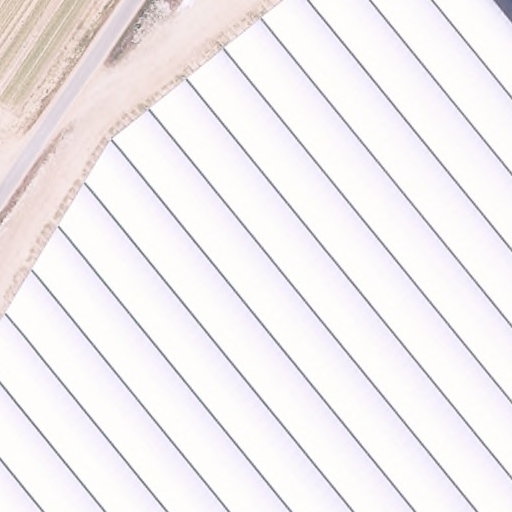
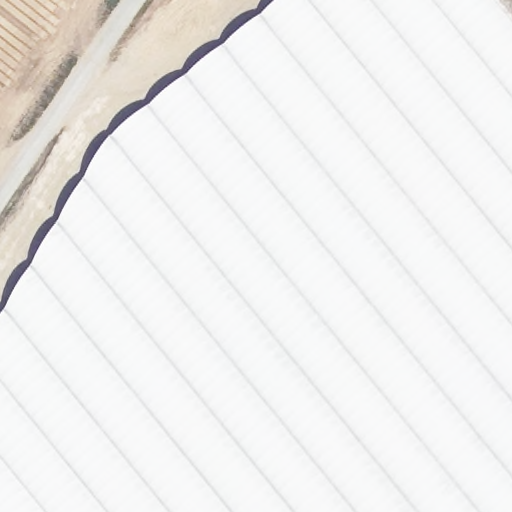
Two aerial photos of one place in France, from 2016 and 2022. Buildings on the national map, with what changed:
unchanged [(512,512),(0,512),(0,324),(112,138),(282,0),(493,0),(512,23),(512,512)]

